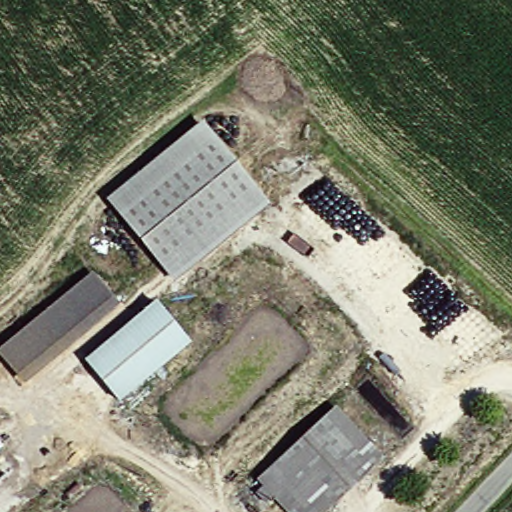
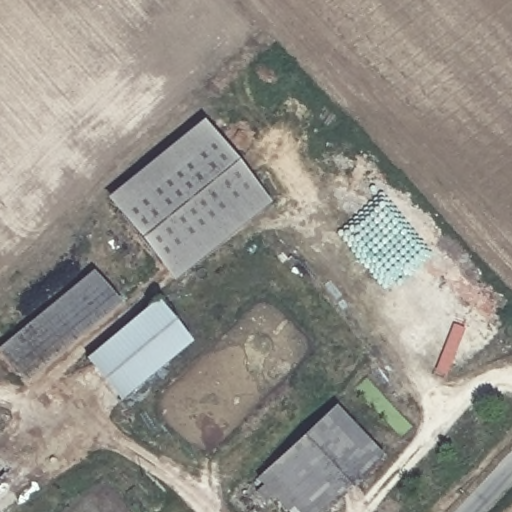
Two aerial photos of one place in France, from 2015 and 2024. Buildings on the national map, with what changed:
unchanged [(172,281),(108,198),(203,123),(268,208),(172,281)]
unchanged [(32,382),(7,351),(47,320),(102,278),(126,308),(66,355),(32,382)]
unchanged [(130,398),(99,359),(166,304),(199,343),(130,398)]
unchanged [(332,512),(298,512),(266,478),(339,403),(390,453),(332,512)]

